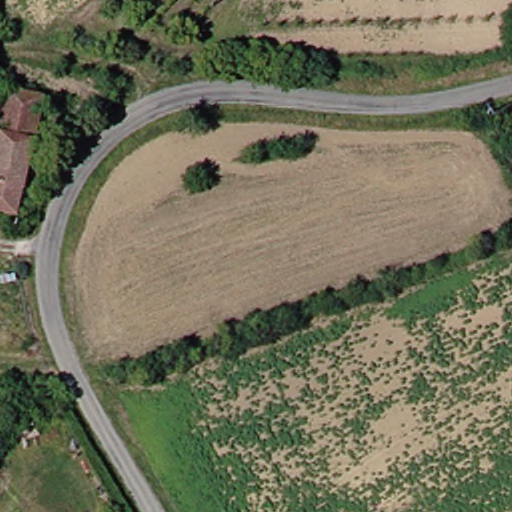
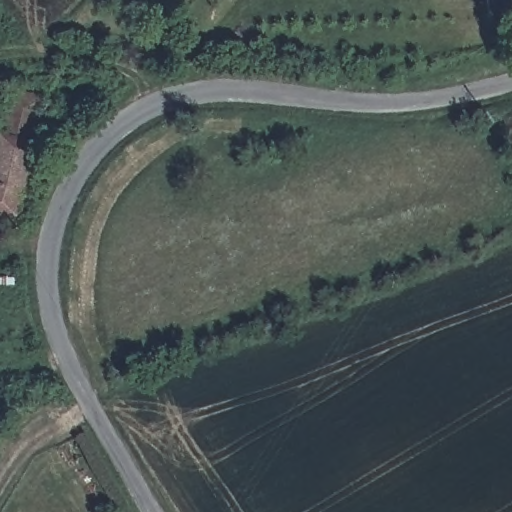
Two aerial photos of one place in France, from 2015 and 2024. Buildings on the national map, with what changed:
unchanged [(34,100),(14,224),(0,222),(0,96),(34,100)]

